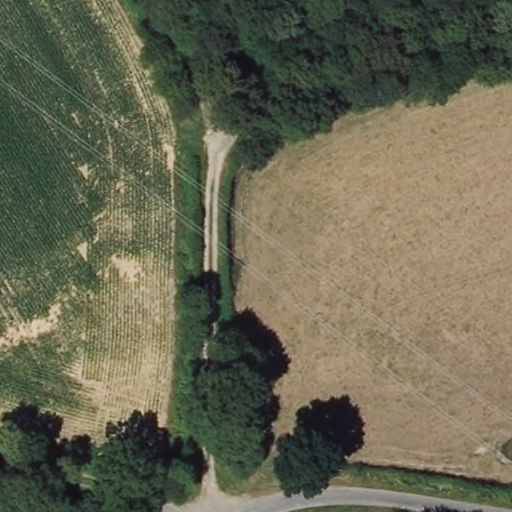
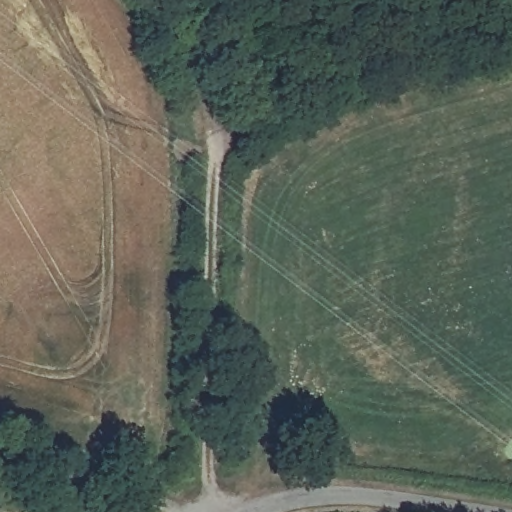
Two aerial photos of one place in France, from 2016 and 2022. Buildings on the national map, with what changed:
[]

